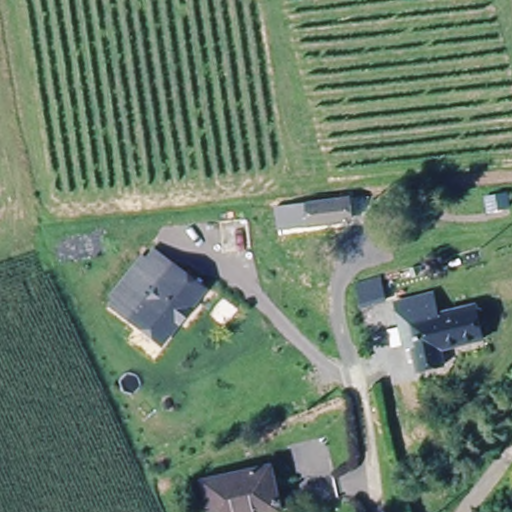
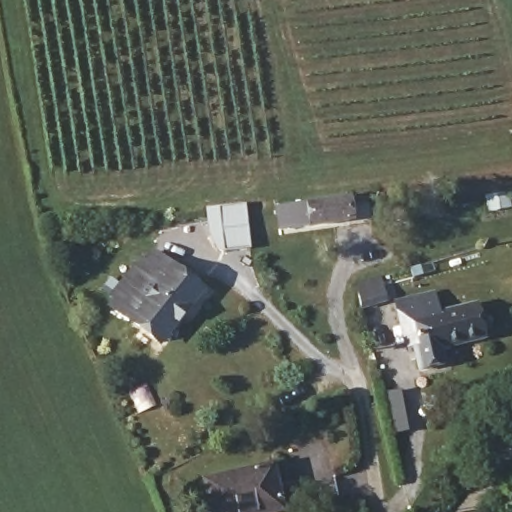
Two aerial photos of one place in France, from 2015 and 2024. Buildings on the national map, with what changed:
unchanged [(270,231),(267,210),(350,201),(350,224),(270,231)]
new [(245,202),(251,249),(222,252),(222,250),(215,247),(210,239),(204,208),(245,202)]
unchanged [(118,305),(150,264),(155,267),(161,260),(180,275),(209,298),(167,351),(137,327),(119,313),(122,308),(118,305)]
unchanged [(363,296),(384,290),(390,315),(369,321),(363,296)]
unchanged [(408,348),(400,318),(442,310),(446,330),(486,321),(495,356),(450,366),(453,380),(429,387),(425,366),(414,368),(408,348)]
unchanged [(204,483),(274,467),(283,512),(210,512),(204,483)]

